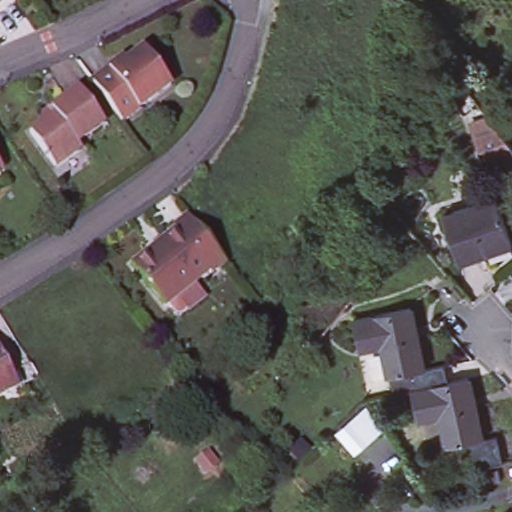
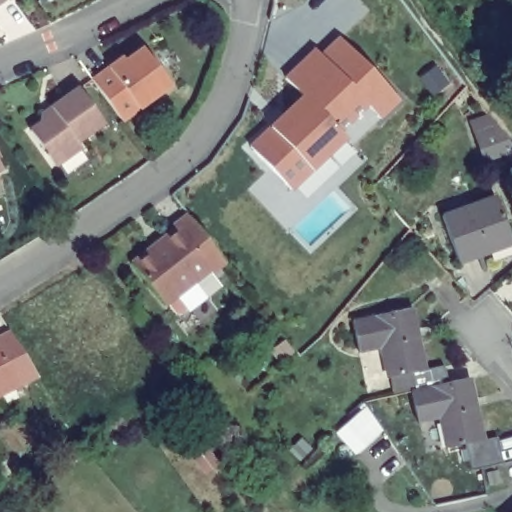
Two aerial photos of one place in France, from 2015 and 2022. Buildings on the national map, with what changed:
new [(270,128),(273,131),(286,119),(283,116),(302,98),(285,80),(315,51),(320,57),(338,40),(397,102),(378,120),(365,107),(337,133),(343,140),(290,191),(250,148),(270,128)]
unchanged [(170,86),(121,121),(92,81),(115,64),(118,67),(142,49),(170,86)]
unchanged [(104,124),(77,142),(81,148),(55,166),(30,131),(46,120),(43,114),(51,108),(78,88),(104,124)]
unchanged [(510,167),(503,149),(483,157),(472,128),(492,121),(512,146),(512,166),(510,167)]
unchanged [(495,198),(512,244),(512,246),(458,264),(442,217),(495,198)]
unchanged [(224,263),(211,274),(209,271),(176,230),(173,226),(187,216),(224,263)]
unchanged [(165,306),(132,264),(176,230),(209,271),(165,306)]
unchanged [(465,444),(448,448),(441,416),(418,420),(411,391),(416,391),(412,372),(388,378),(382,346),(358,350),(352,321),(410,309),(422,370),(445,365),(449,383),(468,379),(481,441),(497,438),(503,464),(481,469),(471,471),(465,444)]
unchanged [(0,397),(0,353),(17,388),(0,397)]
unchanged [(499,470),(501,482),(488,485),(486,472),(499,470)]
unchanged [(510,512),(512,510),(512,512),(510,512)]

